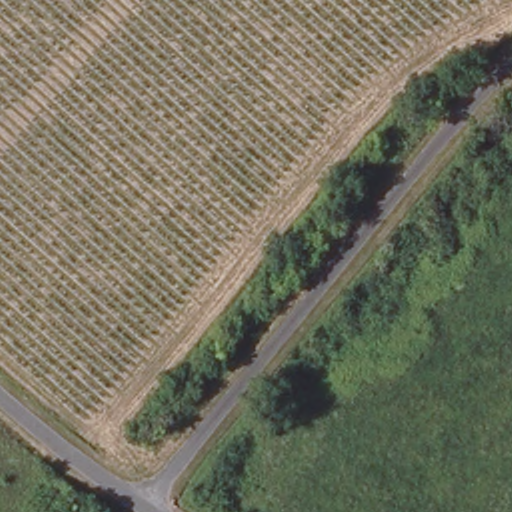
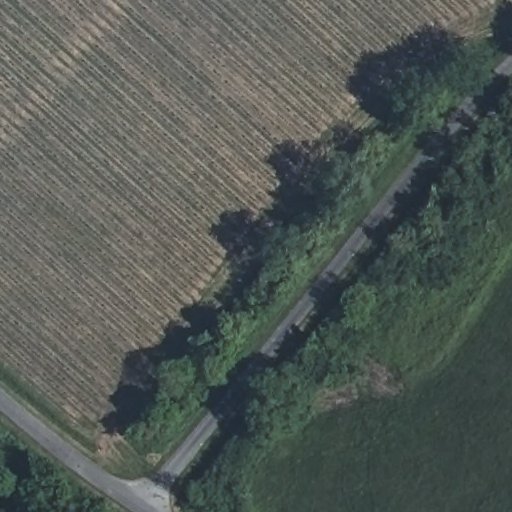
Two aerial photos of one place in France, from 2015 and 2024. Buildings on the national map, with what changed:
[]

